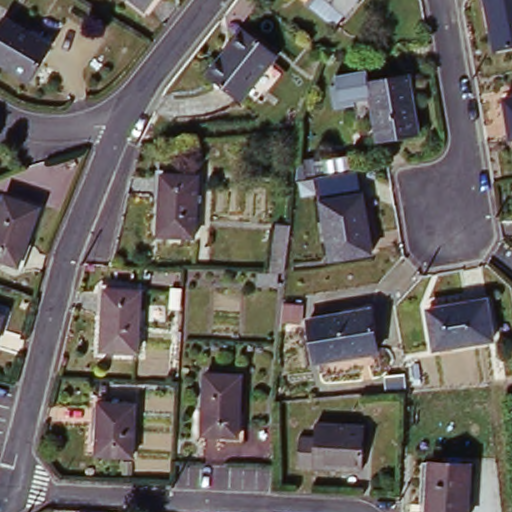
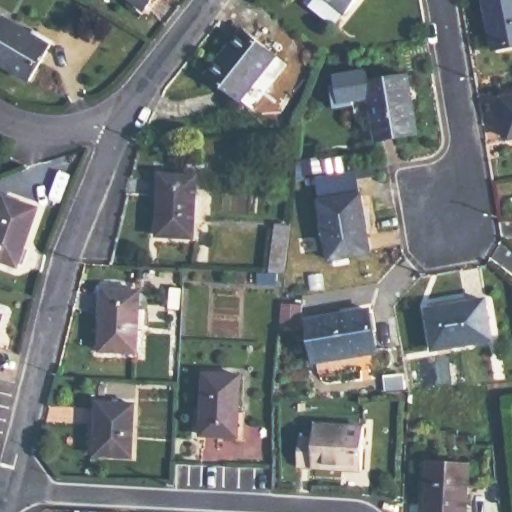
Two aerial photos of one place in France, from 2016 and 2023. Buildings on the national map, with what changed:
unchanged [(137,9),(126,0),(145,0),(137,9)]
unchanged [(334,26),(304,2),(306,0),(356,0),(334,26)]
unchanged [(512,48),(497,50),(487,0),(512,0),(512,48)]
unchanged [(48,45),(27,80),(0,65),(0,26),(4,19),(48,45)]
unchanged [(275,61),(240,105),(205,79),(241,34),(275,61)]
unchanged [(362,107),(344,111),(341,97),(338,97),(336,88),(343,87),(340,77),(373,72),(375,84),(414,78),(426,136),(384,144),(378,120),(365,123),(362,107)]
unchanged [(512,143),(506,144),(499,104),(512,102),(512,143)]
unchanged [(318,157),(320,171),(302,174),(300,160),(318,157)]
unchanged [(195,181),(194,242),(157,240),(160,179),(195,181)]
unchanged [(361,200),(370,258),(328,265),(319,206),(361,200)]
unchanged [(2,214),(7,202),(41,214),(21,272),(0,265),(0,214),(2,214)]
unchanged [(268,273),(275,224),(289,226),(285,274),(268,273)]
unchanged [(140,291),(136,351),(99,350),(103,290),(140,291)]
unchanged [(485,299),(491,341),(432,350),(427,309),(485,299)]
unchanged [(376,358),(314,368),(307,325),(368,314),(376,358)]
unchanged [(1,316),(0,321),(0,316),(1,316)]
unchanged [(239,380),(236,442),(199,439),(202,378),(239,380)]
unchanged [(135,409),(131,462),(94,460),(96,407),(135,409)]
unchanged [(365,428),(363,471),(301,466),(303,436),(320,437),(321,424),(365,428)]
unchanged [(468,512),(426,512),(429,463),(469,465),(468,512)]

